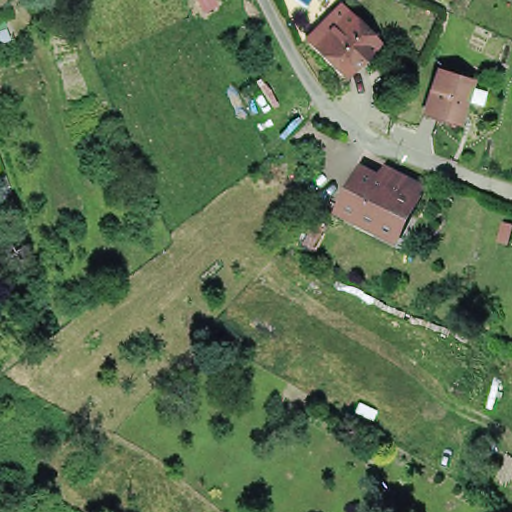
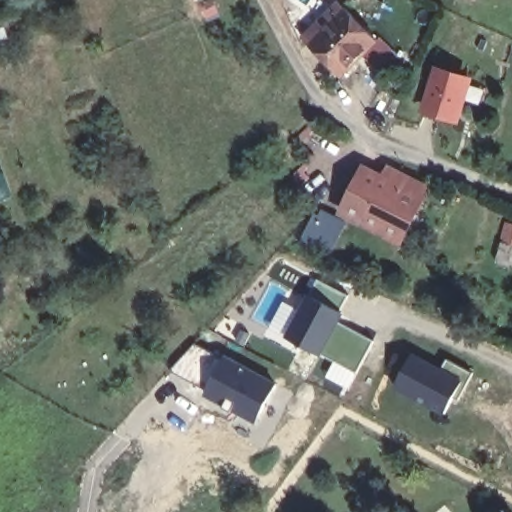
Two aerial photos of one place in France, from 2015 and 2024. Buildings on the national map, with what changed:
unchanged [(382,38),(346,73),(310,35),(319,26),(340,5),(345,10),(350,5),(382,38)]
unchanged [(12,40),(2,44),(0,39),(0,30),(7,28),(12,40)]
unchanged [(474,80),(462,117),(431,106),(443,70),(474,80)]
unchanged [(356,213),(373,176),(391,184),(397,171),(403,174),(435,189),(411,240),(392,231),(372,221),(356,213)]
unchanged [(512,228),(512,236),(510,245),(501,243),(505,226),(512,228)]
new [(339,310),(334,322),(370,340),(354,372),(280,335),(303,292),(339,310)]
new [(194,340),(221,355),(202,389),(171,369),(194,340)]
new [(202,389),(221,355),(222,352),(277,381),(255,422),(201,391),(202,389)]
new [(471,374),(459,401),(447,397),(440,413),(390,386),(407,354),(437,370),(444,358),(471,374)]

